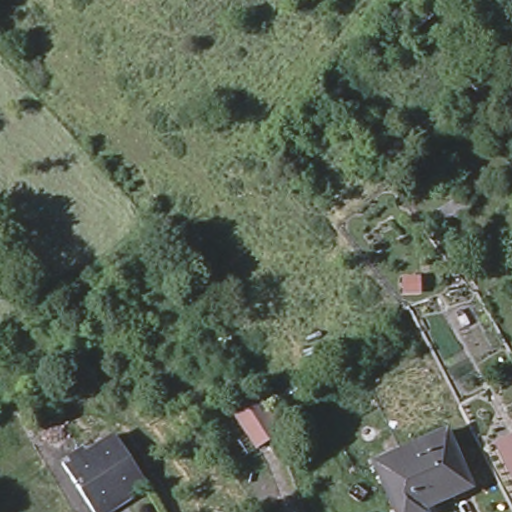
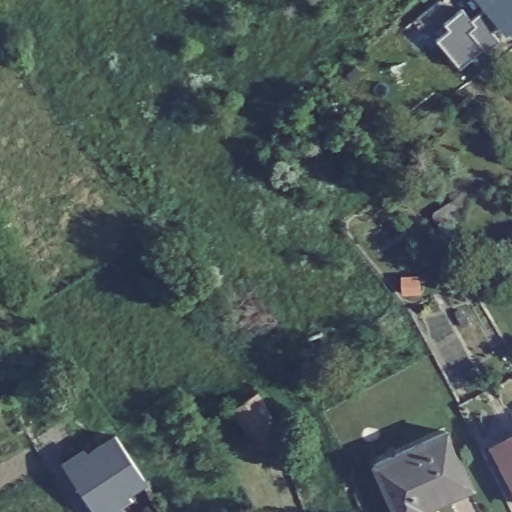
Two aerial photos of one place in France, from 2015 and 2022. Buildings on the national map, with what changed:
new [(437,38),(449,28),(443,22),(460,8),(452,0),(512,0),(512,26),(504,33),(495,23),(488,30),(497,40),(485,51),(480,47),(459,66),(437,38)]
unchanged [(255,392),(282,433),(257,449),(231,408),(255,392)]
unchanged [(471,488),(423,510),(424,512),(395,512),(374,464),(445,432),(471,488)]
unchanged [(94,512),(62,464),(82,451),(85,455),(115,435),(145,482),(99,512),(94,512)]
unchanged [(497,447),(512,440),(512,476),(497,447)]

